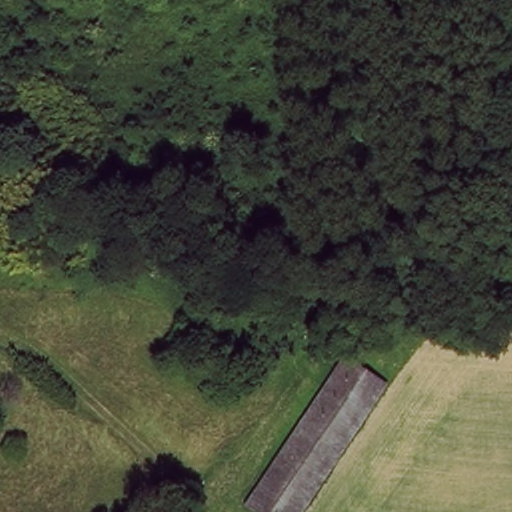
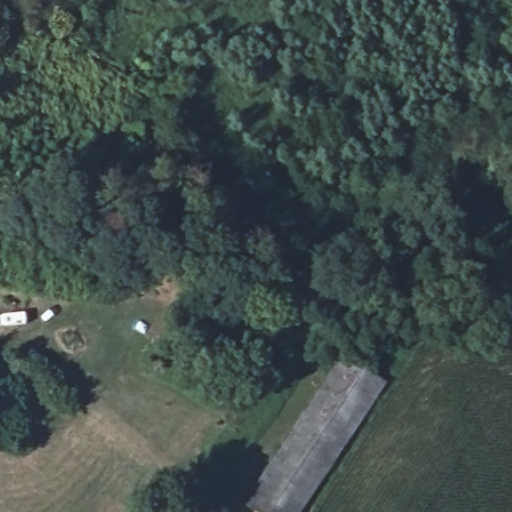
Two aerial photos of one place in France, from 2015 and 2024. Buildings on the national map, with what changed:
unchanged [(250,500),(343,358),(382,385),(297,512),(268,512),(250,500)]

